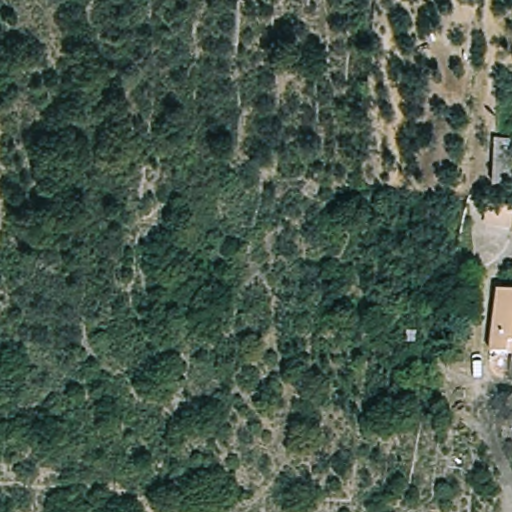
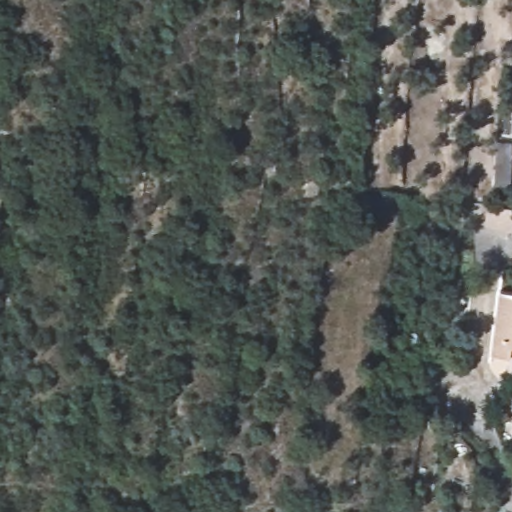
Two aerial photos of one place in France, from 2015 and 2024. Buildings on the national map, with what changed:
unchanged [(509,357),(507,364),(487,360),(497,294),(512,296),(512,358),(509,357)]

